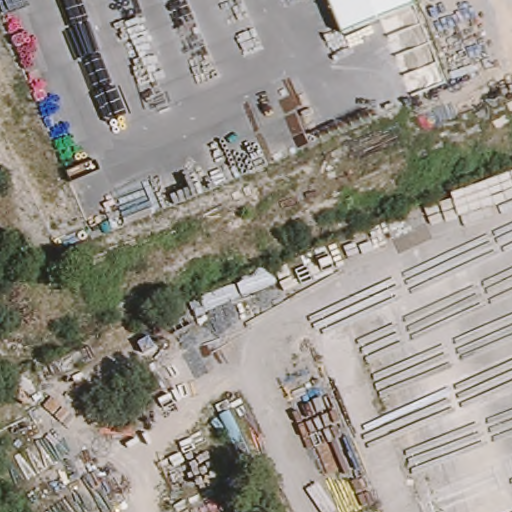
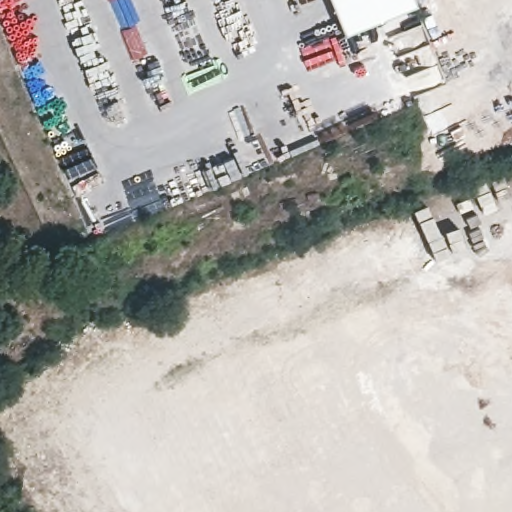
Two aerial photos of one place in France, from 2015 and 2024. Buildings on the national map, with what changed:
unchanged [(345,34),(331,0),(413,0),(415,6),(345,34)]

